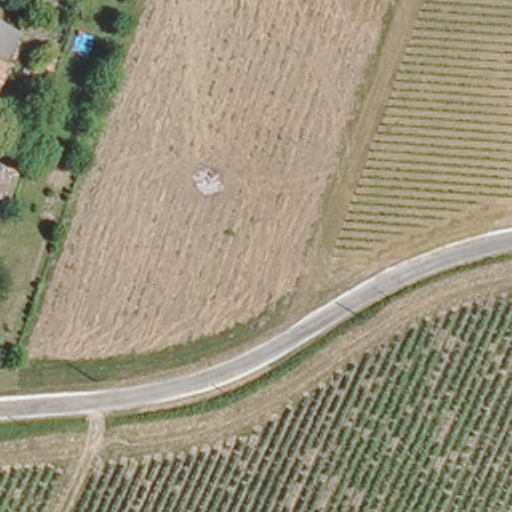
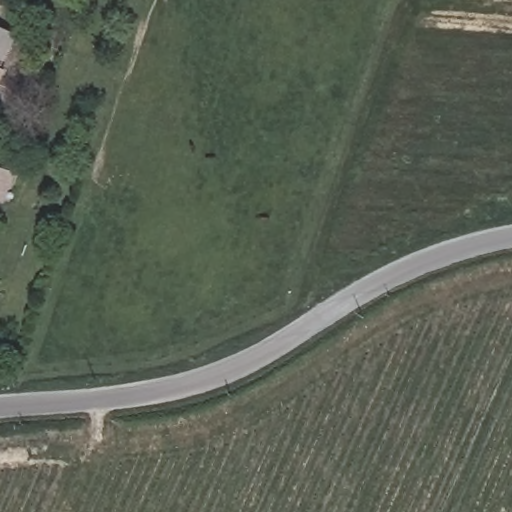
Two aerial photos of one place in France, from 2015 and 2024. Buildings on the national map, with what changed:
unchanged [(1,61),(0,60),(0,21),(17,30),(1,61)]
unchanged [(4,62),(0,70),(0,60),(1,61),(4,62)]
unchanged [(2,200),(0,199),(0,146),(17,152),(2,200)]

